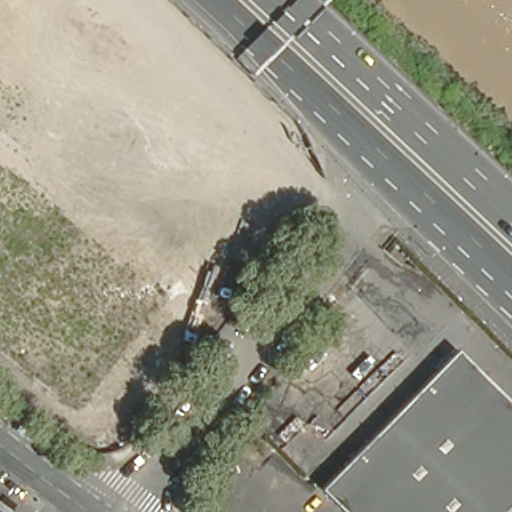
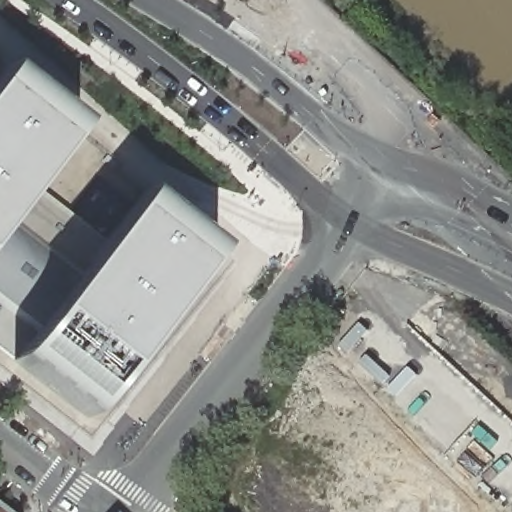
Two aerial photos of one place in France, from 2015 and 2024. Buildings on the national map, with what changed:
new [(5,68),(80,126),(32,186),(0,226),(0,74),(5,68)]
new [(104,242),(10,362),(0,353),(0,226),(32,186),(104,242)]
new [(10,362),(104,242),(142,192),(215,250),(84,418),(10,362)]
demolished [(319,487),(456,348),(512,403),(512,512),(344,512),(319,487)]

